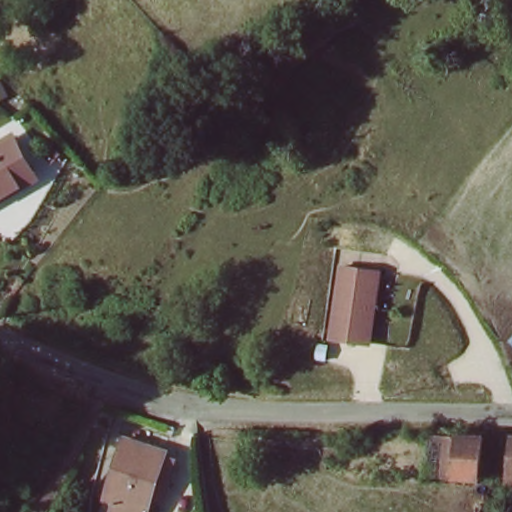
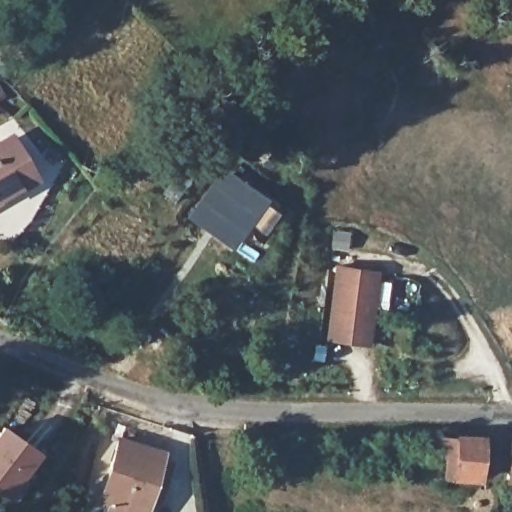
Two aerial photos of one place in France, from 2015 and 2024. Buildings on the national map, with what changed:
unchanged [(0,147),(14,140),(37,179),(0,199),(0,147)]
new [(223,167),(267,200),(232,251),(187,219),(223,167)]
unchanged [(374,272),(365,345),(325,339),(335,267),(374,272)]
new [(8,498),(0,493),(0,429),(2,426),(41,453),(8,498)]
unchanged [(98,507),(126,435),(165,452),(142,512),(109,512),(98,507)]
unchanged [(454,479),(436,477),(425,477),(427,437),(436,437),(456,438),(454,479)]
unchanged [(456,438),(483,439),(480,481),(454,479),(456,438)]
unchanged [(507,485),(508,439),(512,439),(512,485),(507,485)]

